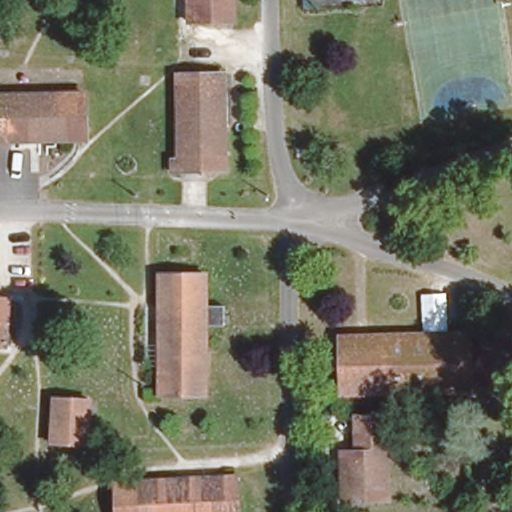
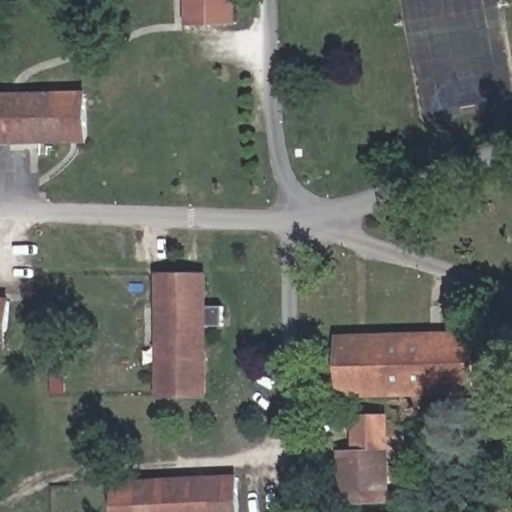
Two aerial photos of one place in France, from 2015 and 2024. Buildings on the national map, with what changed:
unchanged [(236,24),(187,25),(186,0),(235,0),(236,24)]
demolished [(226,170),(167,171),(167,158),(178,158),(177,74),(222,73),(226,170)]
unchanged [(84,144),(0,145),(0,97),(83,95),(84,144)]
unchanged [(203,309),(220,309),(220,331),(203,331),(203,398),(154,398),(154,279),(203,279),(203,309)]
unchanged [(2,344),(0,344),(0,298),(4,298),(2,344)]
unchanged [(467,391),(338,394),(337,336),(466,334),(467,391)]
demolished [(86,444),(49,443),(51,400),(87,401),(86,444)]
unchanged [(392,503),(346,504),(345,455),(353,455),(352,422),(390,420),(392,503)]
unchanged [(129,512),(128,480),(251,474),(252,512),(129,512)]

